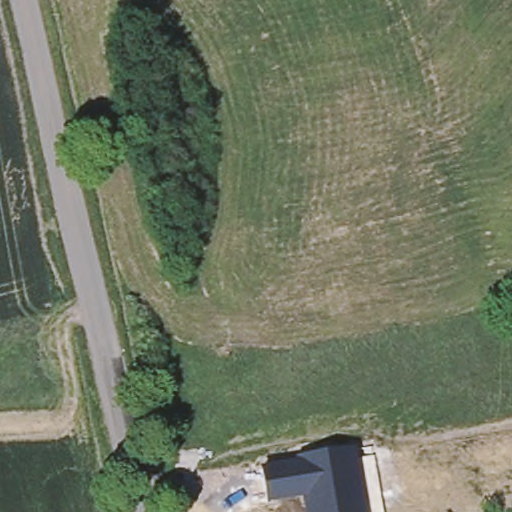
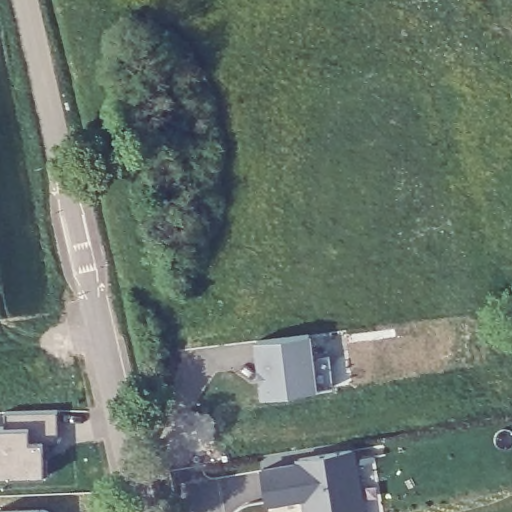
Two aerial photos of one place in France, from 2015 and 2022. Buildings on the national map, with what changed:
new [(309,333),(313,357),(331,355),(334,386),(264,396),(263,381),(266,377),(265,366),(261,366),(258,340),(309,333)]
new [(58,440),(49,440),(50,456),(46,456),(48,474),(43,474),(0,476),(0,427),(4,427),(2,411),(56,409),(58,440)]
unchanged [(266,502),(261,465),(296,458),(296,455),(356,447),(365,512),(305,512),(302,497),(266,502)]
new [(44,509),(48,510),(50,512),(0,512),(0,511),(41,509),(39,510),(44,509)]

